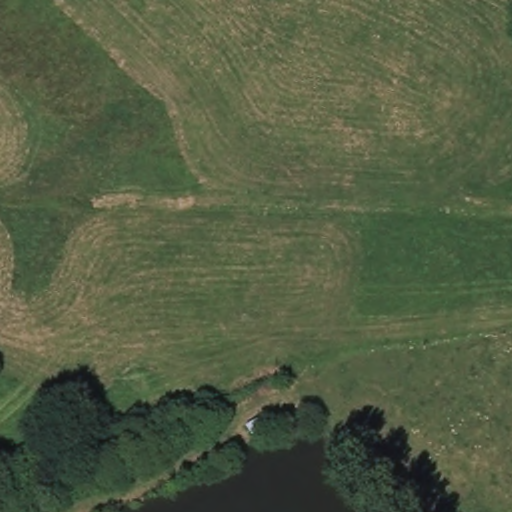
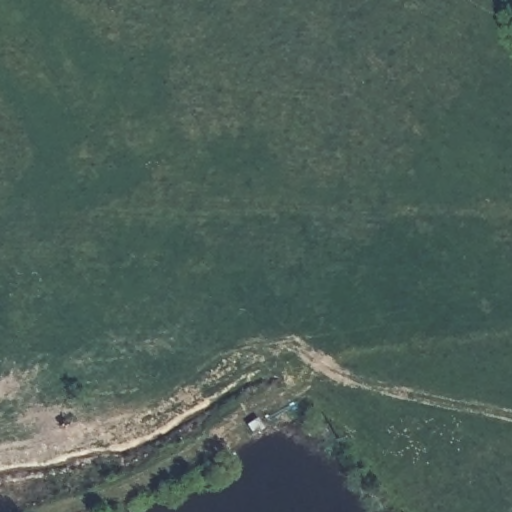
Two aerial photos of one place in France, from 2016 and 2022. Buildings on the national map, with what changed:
unchanged [(244,418),(230,423),(227,412),(240,407),(244,418)]

